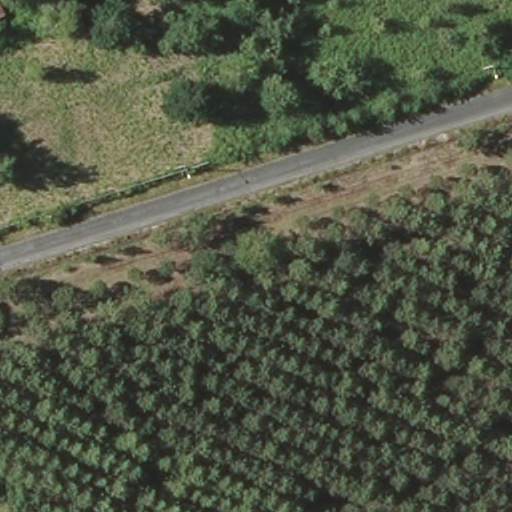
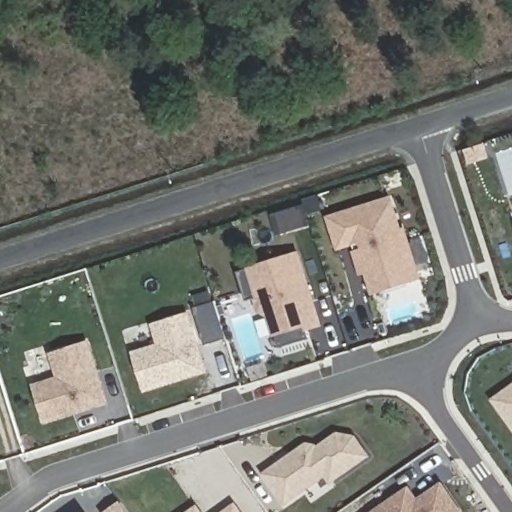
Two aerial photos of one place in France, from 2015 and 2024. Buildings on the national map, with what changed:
new [(391,197),(402,229),(405,228),(421,277),(374,292),(367,271),(362,272),(356,252),(364,249),(361,240),(339,247),(330,217),(391,197)]
new [(309,328),(312,337),(281,346),(271,315),(260,309),(256,297),(247,300),(238,271),(298,252),(305,272),(302,272),(306,283),(308,283),(320,320),(321,324),(309,328)]
new [(217,300),(229,338),(207,345),(195,307),(217,300)]
new [(161,344),(155,324),(190,313),(207,370),(147,390),(136,352),(161,344)]
new [(47,421),(37,385),(61,377),(53,353),(90,342),(109,402),(92,407),(77,412),(47,421)]
new [(512,387),(512,424),(495,399),(512,387)]
new [(309,443),(317,444),(320,447),(340,433),(357,436),(370,455),(333,481),(328,473),(287,502),(266,472),(309,443)]
new [(418,501),(443,485),(462,512),(377,512),(410,489),(415,495),(418,501)]
new [(126,512),(106,512),(120,502),(126,512)]
new [(241,512),(227,512),(236,505),(241,512)]
new [(201,512),(192,512),(198,508),(201,512)]

